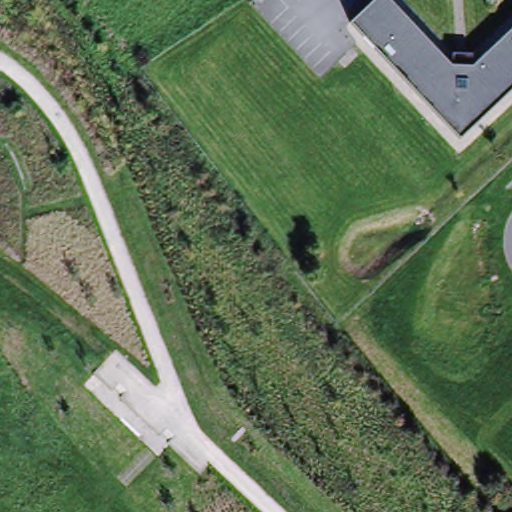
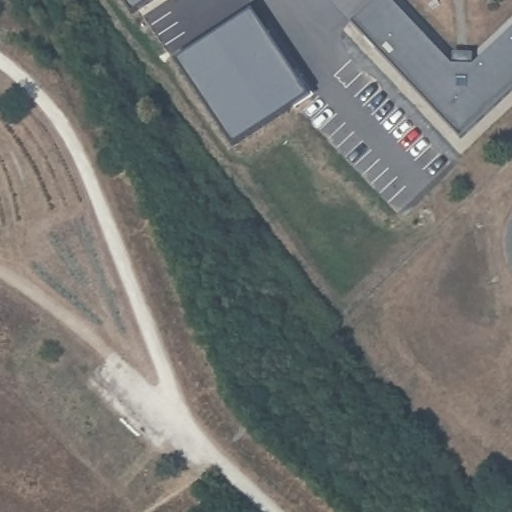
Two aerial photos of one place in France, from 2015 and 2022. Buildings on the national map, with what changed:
new [(133,21),(120,0),(165,0),(133,21)]
unchanged [(354,25),(381,0),(391,0),(455,67),(456,57),(476,58),(476,68),(512,33),(512,96),(464,141),(354,25)]
new [(309,100),(233,152),(175,66),(251,14),(309,100)]

